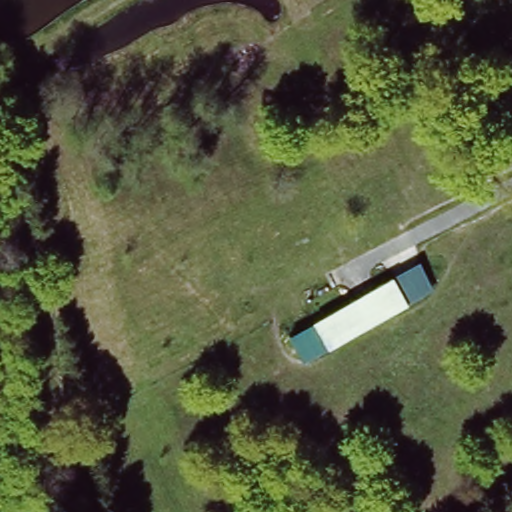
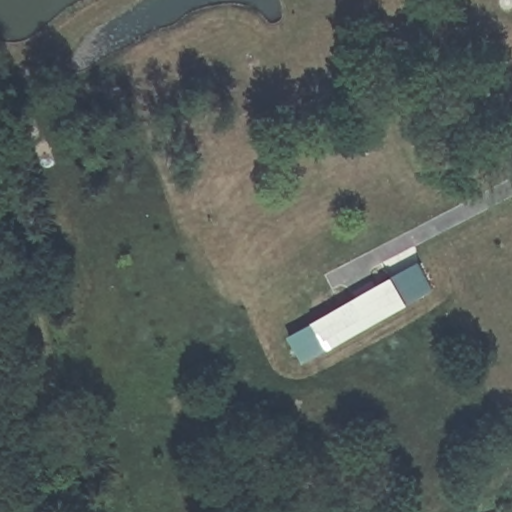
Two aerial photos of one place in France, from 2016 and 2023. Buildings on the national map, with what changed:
unchanged [(435,290),(305,367),(287,333),(418,261),(435,290)]

